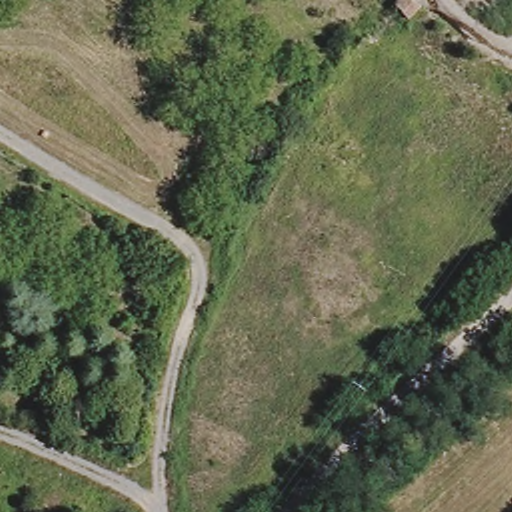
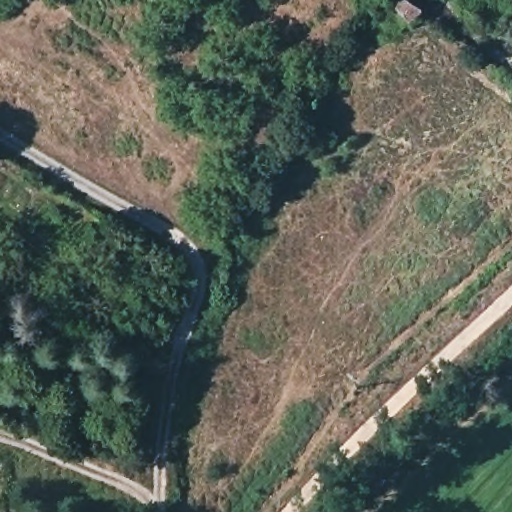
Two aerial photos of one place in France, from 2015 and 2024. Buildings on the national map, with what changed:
unchanged [(392,0),(408,0),(416,7),(414,11),(405,22),(386,6),(392,0)]

